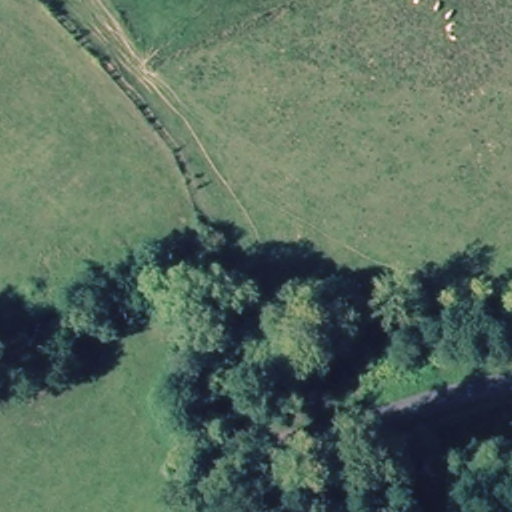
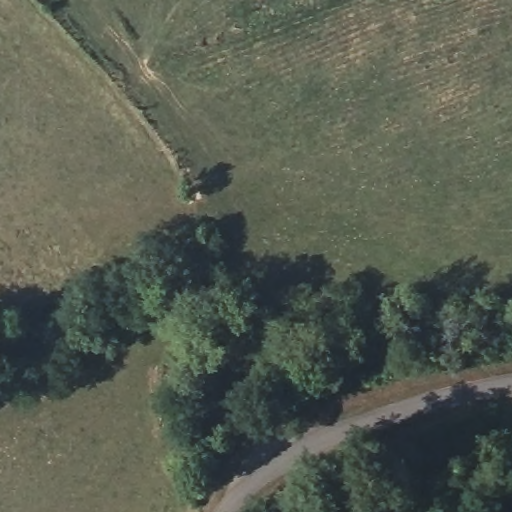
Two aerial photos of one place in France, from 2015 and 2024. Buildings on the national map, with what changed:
[]

